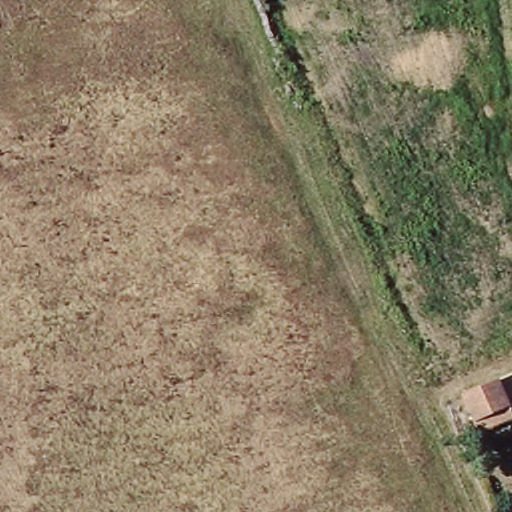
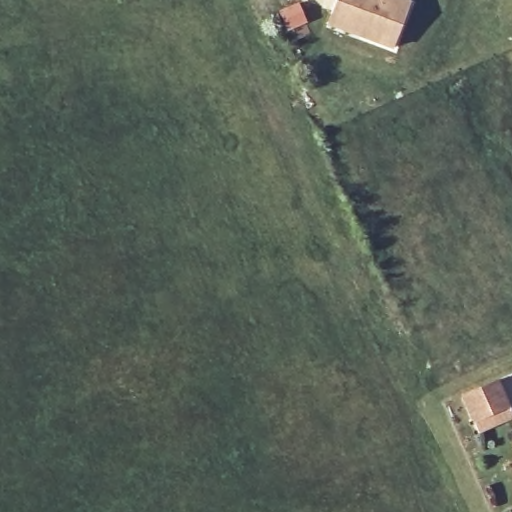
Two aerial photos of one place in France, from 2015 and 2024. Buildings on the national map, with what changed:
new [(336,0),(399,0),(408,3),(393,50),(358,36),(327,24),(331,14),(336,0)]
unchanged [(482,433),(478,424),(466,397),(501,382),(512,407),(512,420),(482,433)]

